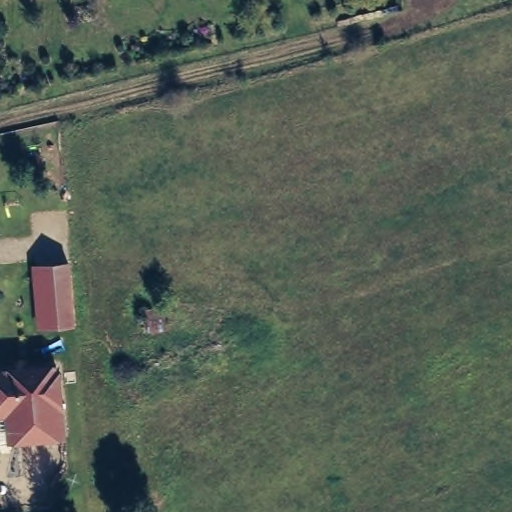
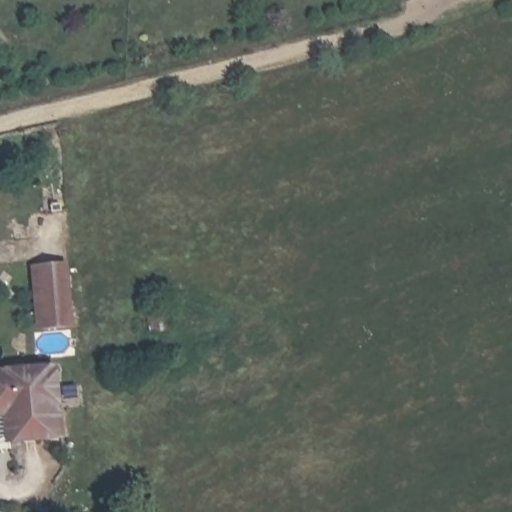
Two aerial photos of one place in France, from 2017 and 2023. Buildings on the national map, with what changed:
unchanged [(37,326),(35,312),(32,267),(62,265),(65,310),(67,323),(37,326)]
unchanged [(64,436),(10,440),(9,412),(0,413),(0,371),(59,366),(64,436)]

